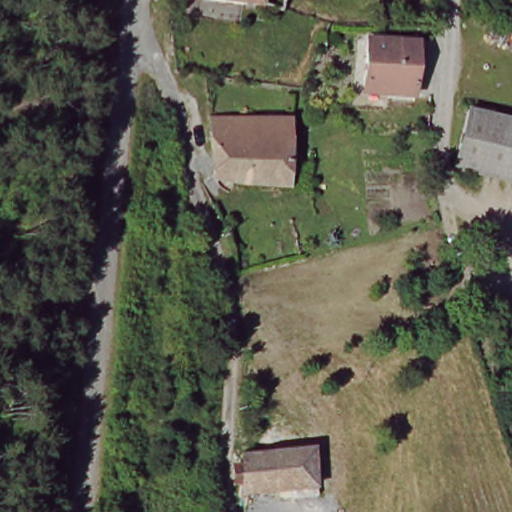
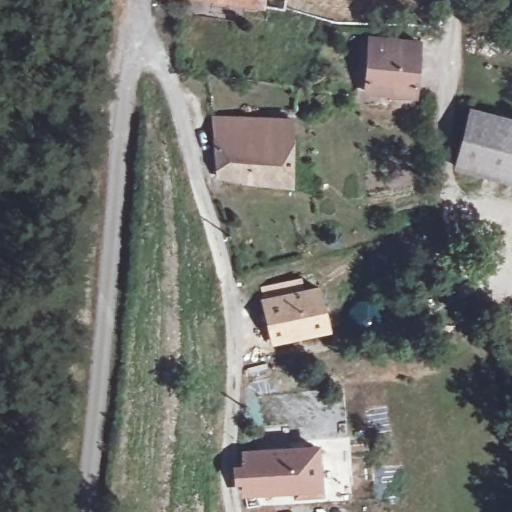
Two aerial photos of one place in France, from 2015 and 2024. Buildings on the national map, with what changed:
unchanged [(254,0),(262,0),(262,1),(254,0)]
unchanged [(366,41),(418,46),(418,100),(385,98),(385,89),(365,88),(366,41)]
unchanged [(463,120),(467,104),(512,120),(512,181),(453,160),(463,120)]
unchanged [(223,180),(223,149),(221,113),(279,118),(280,128),(292,128),(294,184),(228,180),(223,180)]
new [(303,276),(305,285),(321,282),(332,331),(271,345),(259,286),(303,276)]
unchanged [(248,503),(242,463),(311,449),(319,484),(248,503)]

